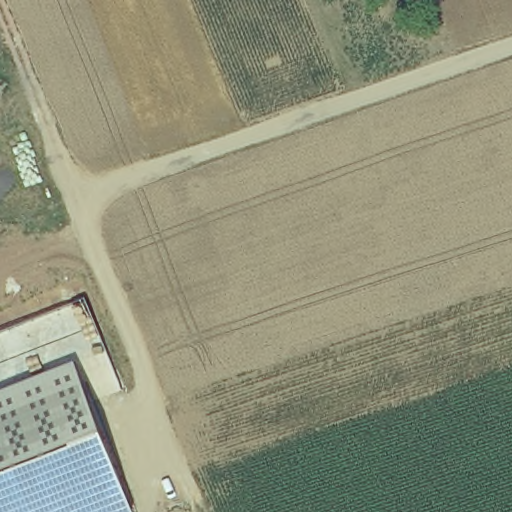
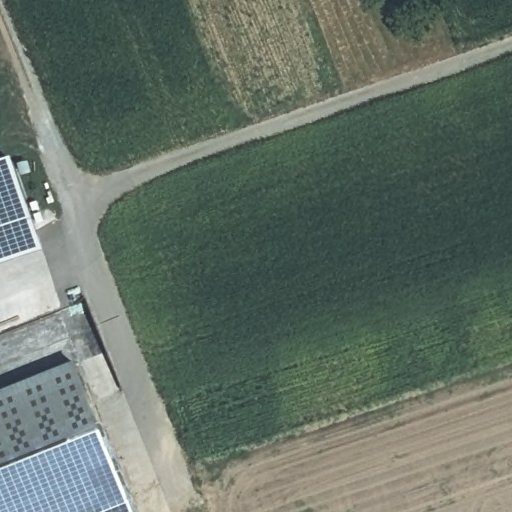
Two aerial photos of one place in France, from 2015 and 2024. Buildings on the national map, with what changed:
new [(9,156),(38,250),(0,263),(0,159),(9,156)]
unchanged [(75,364),(134,512),(0,512),(0,394),(75,364)]

